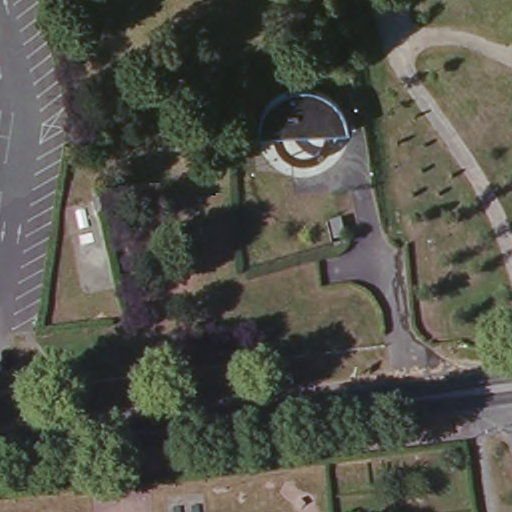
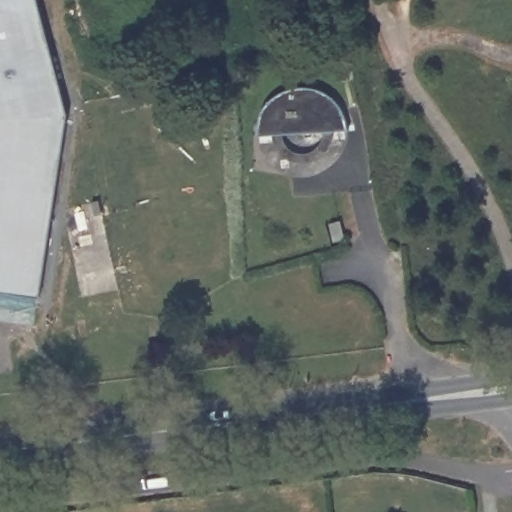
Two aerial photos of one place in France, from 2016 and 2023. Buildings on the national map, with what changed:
new [(67,130),(42,314),(0,308),(0,0),(33,0),(67,130)]

